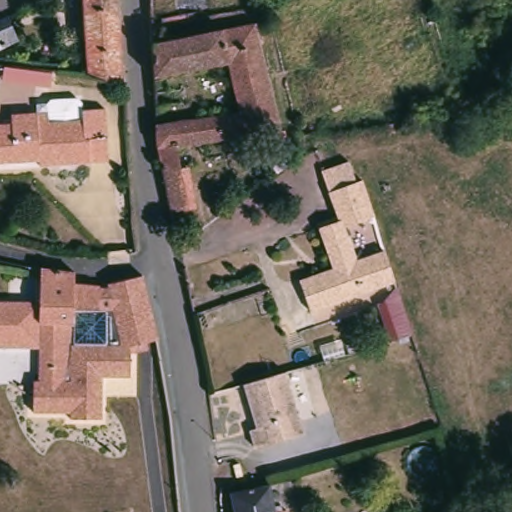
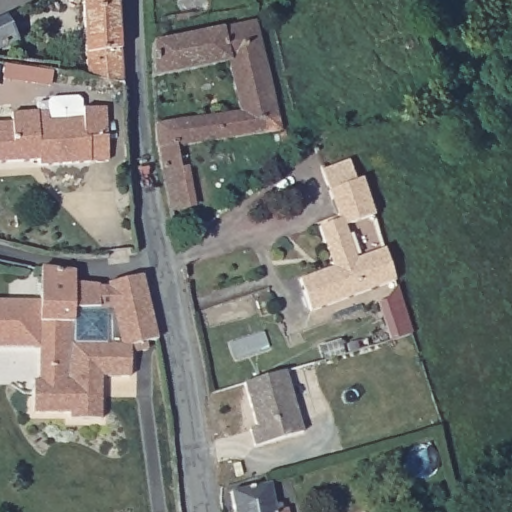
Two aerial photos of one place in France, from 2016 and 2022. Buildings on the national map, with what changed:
unchanged [(56,8),(52,0),(70,0),(56,8)]
unchanged [(121,81),(85,75),(80,0),(115,0),(121,81)]
unchanged [(18,43),(0,53),(0,24),(7,21),(18,43)]
unchanged [(168,215),(167,215),(161,187),(160,183),(154,153),(152,128),(237,115),(225,67),(150,82),(150,79),(148,45),(252,25),(278,136),(173,149),(180,179),(186,211),(168,215)]
unchanged [(0,81),(0,66),(51,72),(50,87),(0,81)]
unchanged [(40,162),(39,158),(0,162),(0,122),(11,122),(10,113),(36,111),(36,97),(84,96),(85,108),(107,107),(108,159),(40,162)]
unchanged [(474,121),(459,123),(457,124),(454,108),(470,105),(474,121)]
unchanged [(371,220),(341,230),(352,263),(381,254),(392,287),(305,314),(294,284),(328,272),(314,231),(335,223),(318,173),(321,172),(346,165),(353,186),(359,185),(371,220)]
unchanged [(149,342),(151,348),(131,351),(131,377),(105,377),(103,419),(72,419),(72,412),(34,412),(33,378),(37,378),(38,346),(0,346),(0,301),(40,301),(42,269),(78,270),(77,282),(108,285),(108,282),(143,275),(159,338),(149,342)]
unchanged [(283,370),(293,406),(300,431),(252,445),(247,428),(254,426),(251,418),(241,382),(283,370)]
unchanged [(233,512),(229,493),(268,485),(274,511),(284,509),(285,512),(233,512)]

